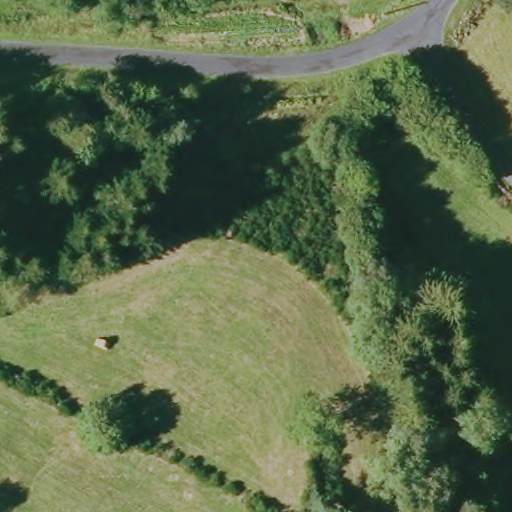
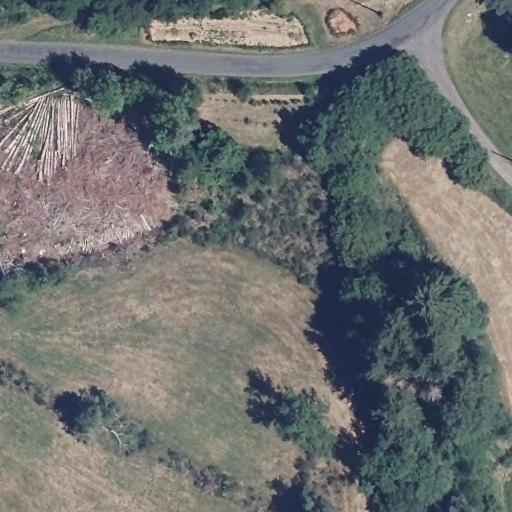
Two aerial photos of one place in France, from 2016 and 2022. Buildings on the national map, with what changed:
[]

